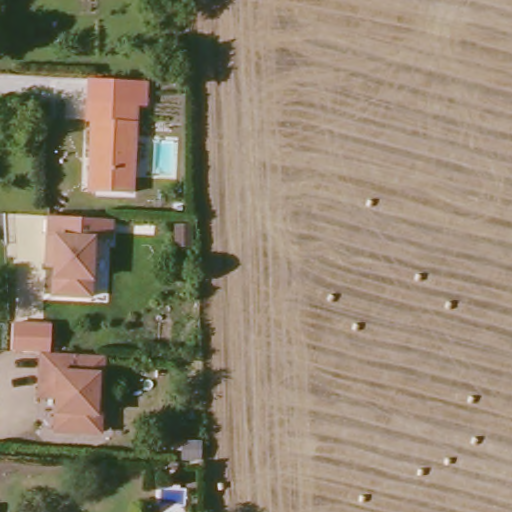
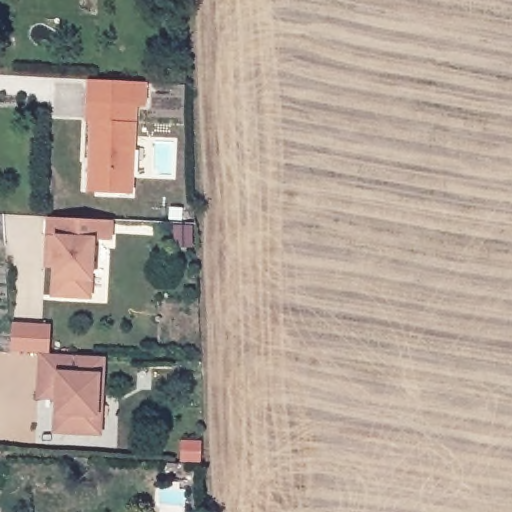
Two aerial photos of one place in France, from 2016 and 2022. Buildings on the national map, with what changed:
unchanged [(92,192),(94,157),(87,156),(89,122),(84,121),(85,79),(142,83),(142,106),(132,106),(130,193),(92,192)]
unchanged [(97,240),(94,295),(55,294),(56,263),(49,263),(52,217),(115,219),(114,241),(97,240)]
unchanged [(105,386),(104,428),(62,426),(64,395),(47,394),(37,396),(38,352),(12,349),(14,323),(50,324),(49,350),(112,353),(110,386),(105,386)]

